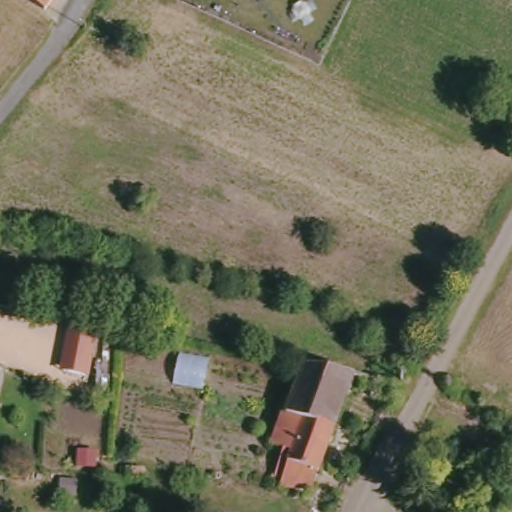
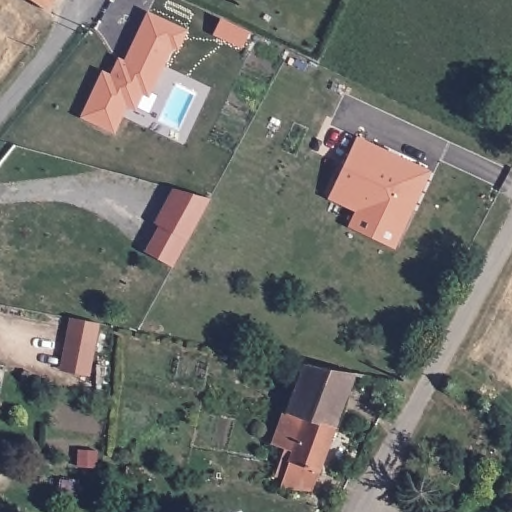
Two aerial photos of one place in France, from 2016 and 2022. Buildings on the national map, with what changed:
unchanged [(38,0),(46,0),(43,4),(38,0)]
new [(103,74),(111,77),(119,61),(129,66),(133,58),(129,55),(147,14),(186,31),(178,48),(171,46),(151,85),(143,88),(135,106),(123,105),(114,131),(83,117),(103,74)]
new [(429,171),(394,248),(348,227),(356,211),(328,197),(357,136),(429,171)]
new [(209,198),(173,269),(144,254),(174,189),(209,198)]
unchanged [(68,332),(98,338),(90,376),(59,369),(68,332)]
unchanged [(314,471),(313,471),(306,489),(274,486),(278,477),(269,474),(279,445),(268,441),(281,406),(284,407),(299,362),(349,372),(314,471)]
unchanged [(131,477),(131,466),(143,466),(143,478),(131,477)]
unchanged [(512,477),(512,498),(503,492),(512,477)]
unchanged [(512,504),(512,512),(508,512),(512,504)]

